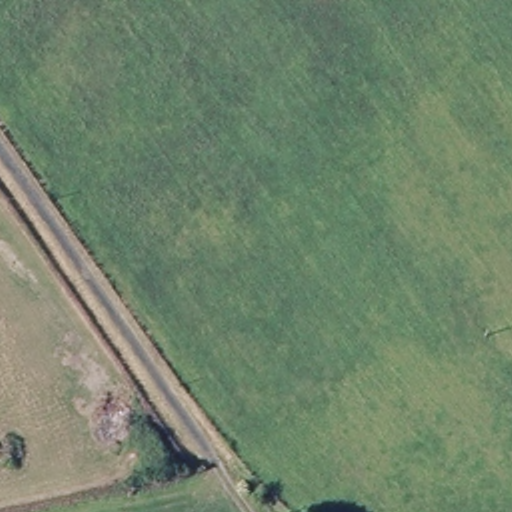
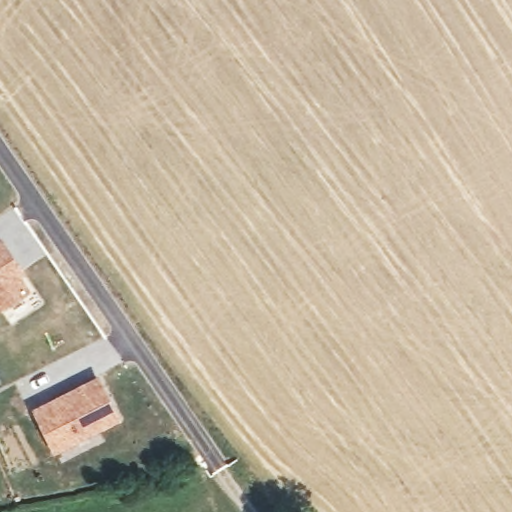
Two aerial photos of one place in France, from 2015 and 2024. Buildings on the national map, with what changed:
new [(19,275),(29,288),(0,310),(0,235),(26,270),(19,275)]
new [(121,418),(54,452),(29,407),(98,372),(121,418)]

